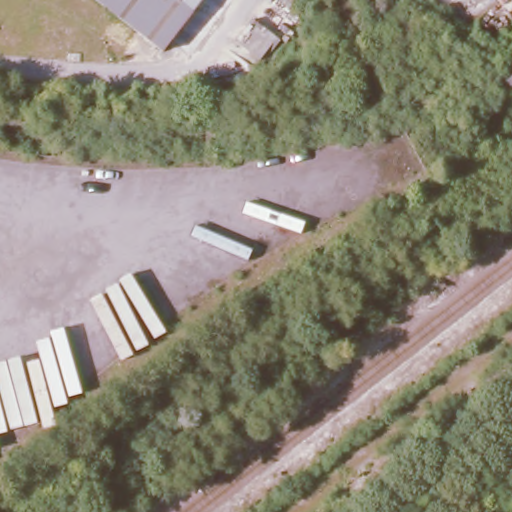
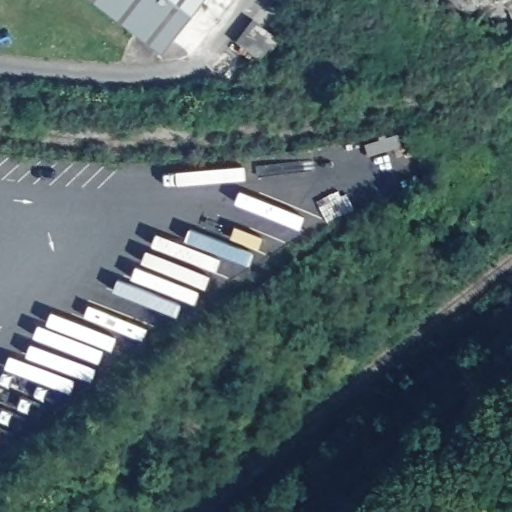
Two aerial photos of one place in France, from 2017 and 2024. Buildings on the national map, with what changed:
unchanged [(109,0),(194,0),(162,41),(109,0)]
unchanged [(455,0),(465,0),(462,5),(455,0)]

